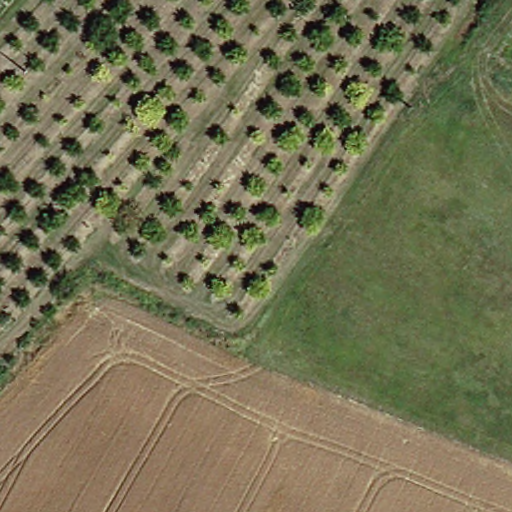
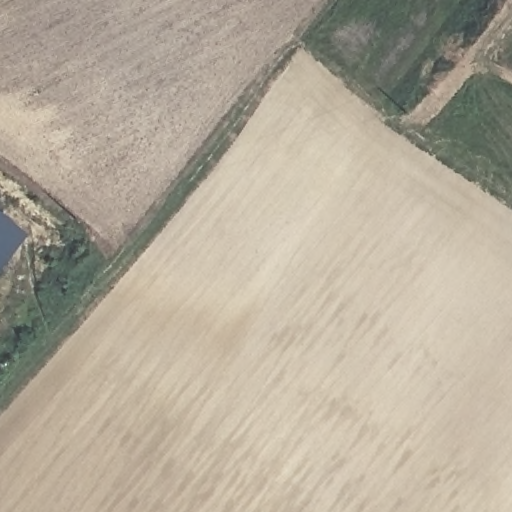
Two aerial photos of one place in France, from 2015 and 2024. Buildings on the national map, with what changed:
new [(0,265),(0,210),(27,233),(0,265)]

